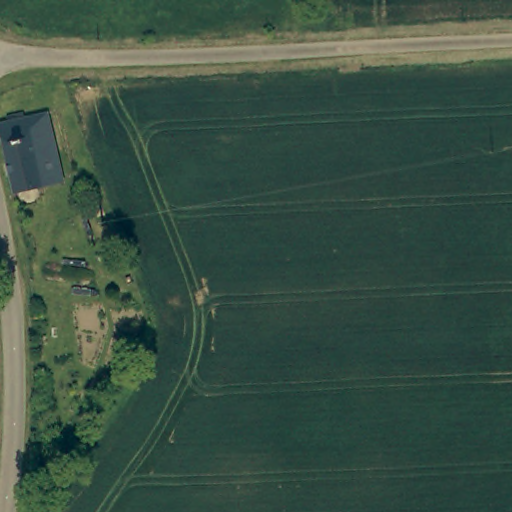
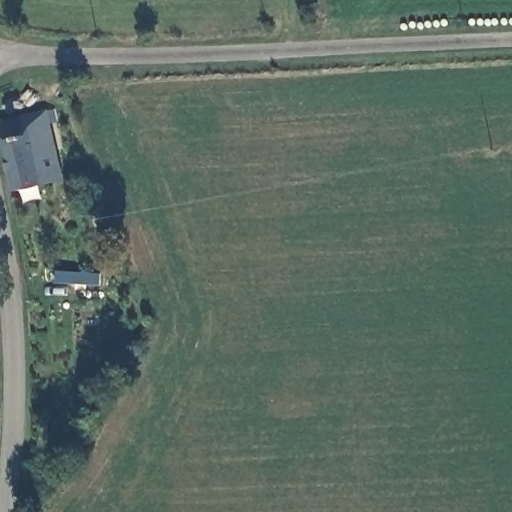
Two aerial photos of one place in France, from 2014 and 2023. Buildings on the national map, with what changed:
unchanged [(16,121),(32,116),(35,115),(40,130),(47,153),(59,185),(12,201),(0,167),(0,127),(16,121)]

